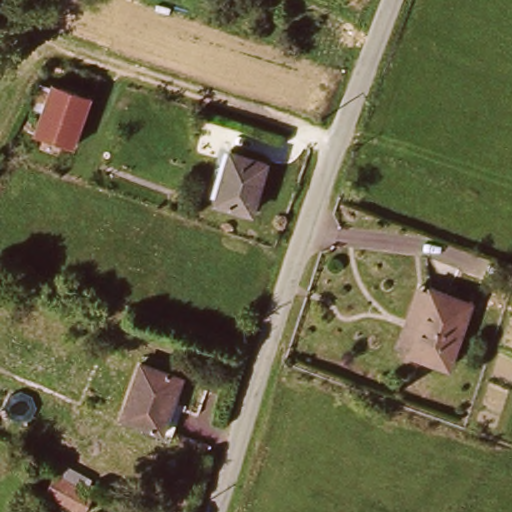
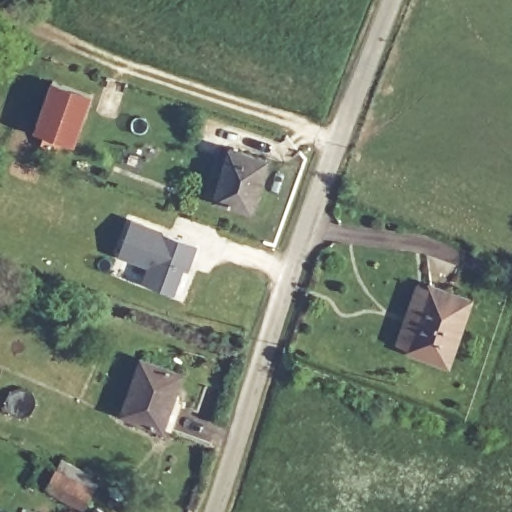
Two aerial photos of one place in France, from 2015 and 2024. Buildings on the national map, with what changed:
unchanged [(67,145),(61,156),(47,149),(50,138),(36,131),(55,81),(94,95),(73,147),(67,145)]
unchanged [(263,160),(247,208),(212,196),(229,148),(263,160)]
new [(198,244),(190,269),(183,267),(174,295),(142,283),(147,268),(118,258),(130,220),(198,244)]
unchanged [(450,367),(412,352),(398,346),(421,283),(432,286),(473,302),(450,367)]
unchanged [(183,376),(163,429),(122,414),(142,361),(183,376)]
unchanged [(37,483),(48,463),(80,480),(68,500),(37,483)]

